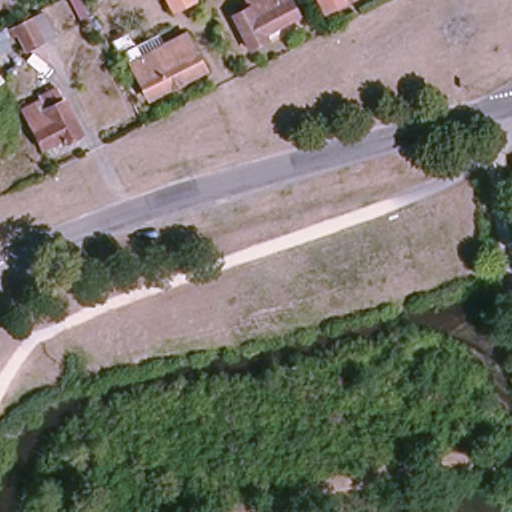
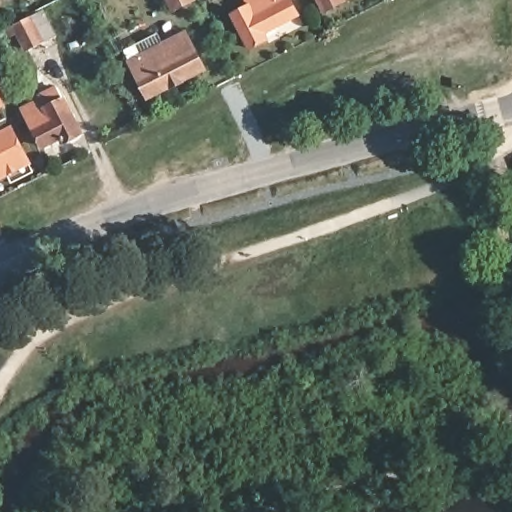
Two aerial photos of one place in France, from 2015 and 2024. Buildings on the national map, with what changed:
unchanged [(168,0),(188,0),(172,9),(168,0)]
unchanged [(248,4),(246,0),(291,0),(298,13),(265,31),(267,34),(247,45),(230,15),(248,4)]
unchanged [(322,0),(345,0),(325,9),(322,0)]
unchanged [(34,11),(48,40),(30,49),(18,26),(13,29),(9,24),(15,20),(28,14),(34,11)]
unchanged [(111,36),(113,40),(125,34),(135,51),(117,60),(106,39),(111,36)]
unchanged [(190,34),(208,71),(151,100),(141,80),(142,79),(133,62),(190,34)]
new [(2,109),(7,119),(0,123),(0,92),(7,106),(2,109)]
unchanged [(80,134),(61,144),(59,139),(43,147),(29,119),(24,109),(39,101),(44,112),(64,102),(80,134)]
new [(0,179),(0,138),(11,132),(28,164),(0,179)]

